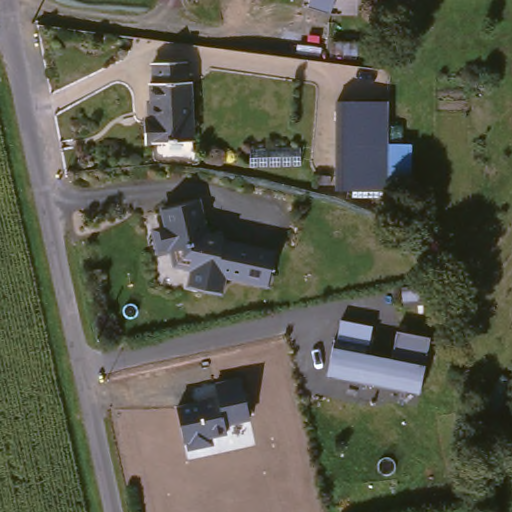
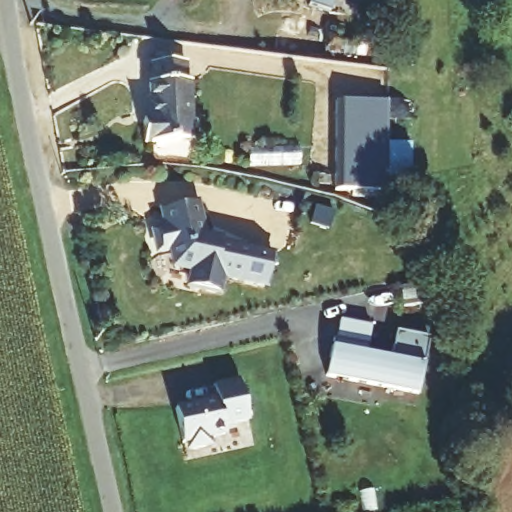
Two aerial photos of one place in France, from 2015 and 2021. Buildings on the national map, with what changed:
unchanged [(329,10),(310,3),(311,0),(332,0),(329,10)]
unchanged [(414,50),(388,50),(388,0),(417,0),(414,50)]
unchanged [(153,61),(184,60),(184,80),(194,81),(193,136),(147,134),(153,61)]
unchanged [(339,98),(407,100),(405,140),(413,141),(410,191),(337,185),(339,98)]
unchanged [(163,226),(158,209),(193,200),(202,231),(220,235),(219,239),(271,248),(265,280),(222,272),(219,288),(188,282),(191,266),(173,262),(169,246),(160,249),(154,229),(163,226)]
unchanged [(336,335),(339,335),(341,316),(372,321),(368,347),(392,351),(396,325),(429,330),(420,385),(330,370),(336,335)]
unchanged [(227,425),(229,433),(213,436),(215,445),(188,450),(178,407),(219,398),(217,385),(242,380),(250,420),(227,425)]

